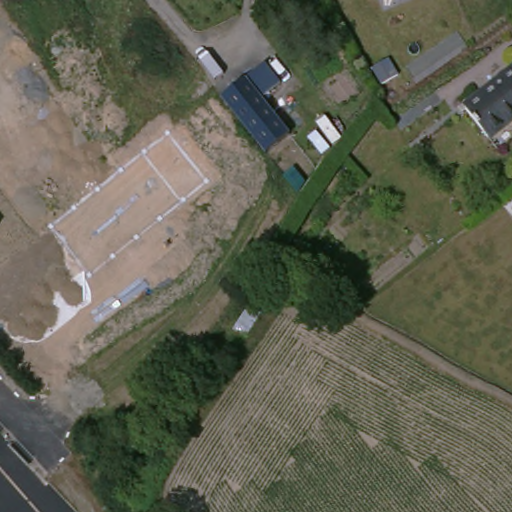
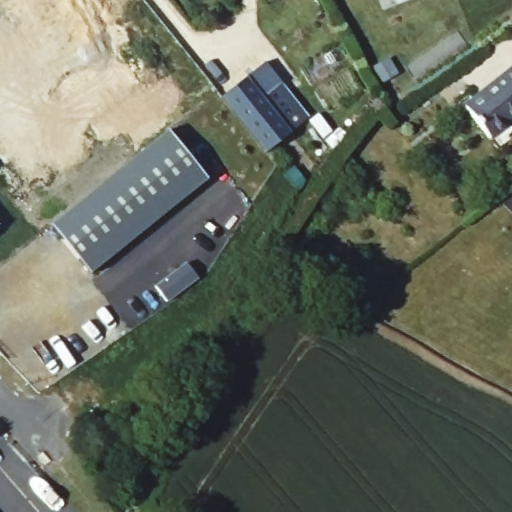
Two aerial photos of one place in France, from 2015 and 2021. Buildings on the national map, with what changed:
unchanged [(278,79),(259,95),(288,130),(266,150),(219,96),(262,59),(278,79)]
unchanged [(512,65),(512,118),(489,138),(462,106),(511,64),(512,65)]
new [(172,126),(212,174),(93,269),(55,222),(172,126)]

